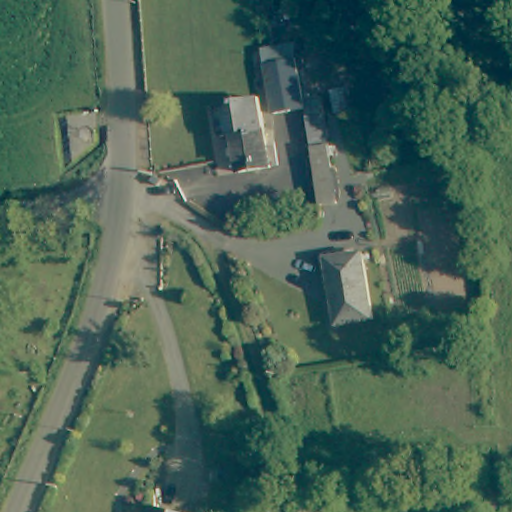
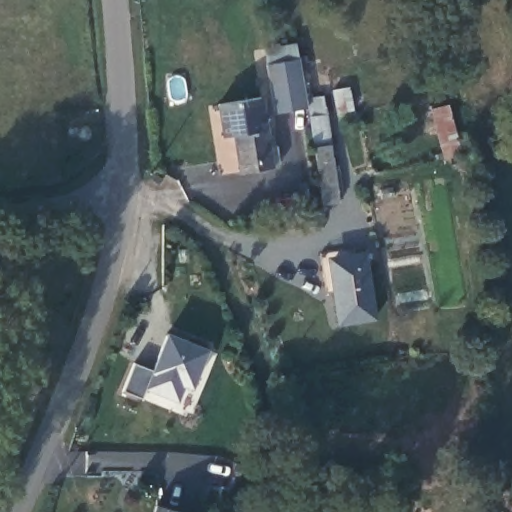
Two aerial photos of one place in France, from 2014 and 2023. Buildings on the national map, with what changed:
unchanged [(272,112),(263,69),(261,56),(293,50),(295,62),(304,106),(272,112)]
unchanged [(274,165),(243,171),(236,134),(225,135),(219,103),(261,95),(274,165)]
unchanged [(328,198),(317,144),(307,96),(324,95),(333,140),(344,195),(328,198)]
unchanged [(378,319),(339,325),(329,265),(350,261),(349,254),(365,251),(378,319)]
new [(133,362),(151,368),(166,332),(212,348),(195,391),(185,387),(179,405),(145,392),(142,400),(123,392),(133,362)]
unchanged [(184,512),(154,512),(156,505),(184,512)]

